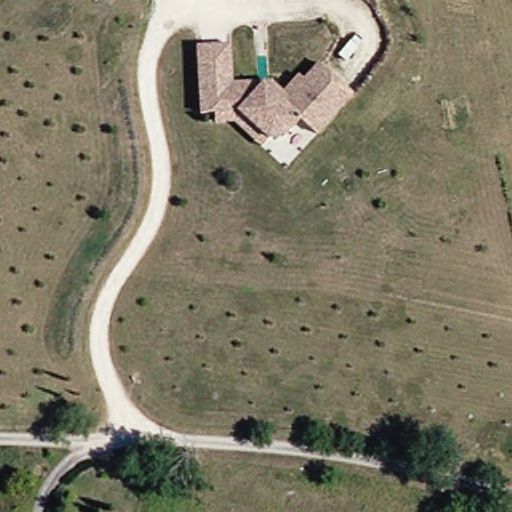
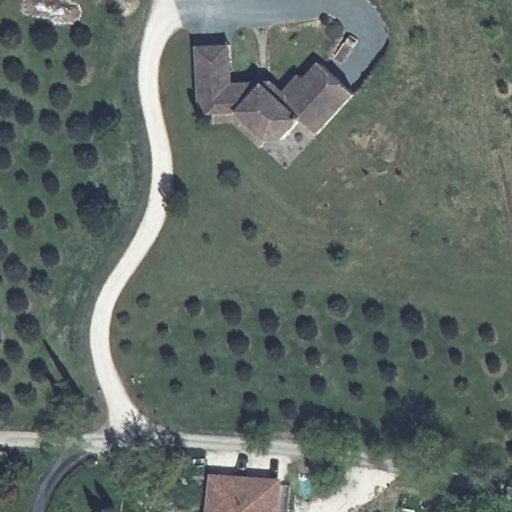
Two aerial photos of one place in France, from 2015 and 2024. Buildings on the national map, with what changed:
unchanged [(253,151),(229,130),(210,132),(209,122),(195,123),(192,82),(191,55),(223,53),(226,92),(237,91),(265,89),(278,99),(293,82),(297,86),(312,69),(347,99),(312,140),(295,126),(278,146),(263,147),(257,154),(253,151)]
new [(208,512),(211,473),(283,478),(281,512),(208,512)]

